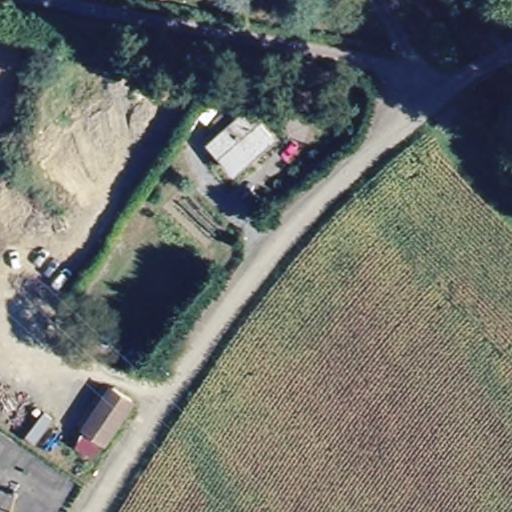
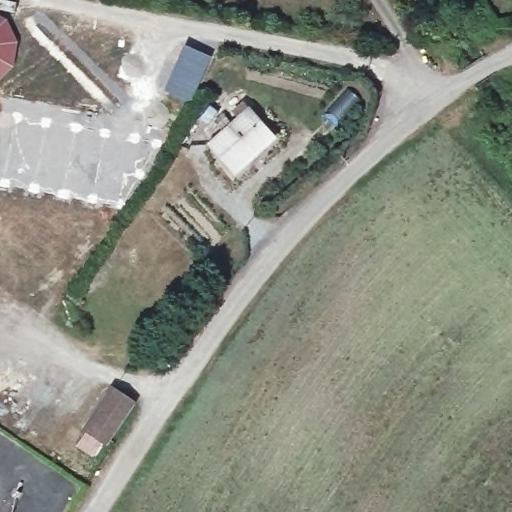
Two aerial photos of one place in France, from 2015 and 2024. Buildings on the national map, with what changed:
new [(20,42),(14,67),(0,81),(0,15),(9,19),(20,42)]
new [(186,44),(213,56),(192,103),(166,91),(186,44)]
unchanged [(209,144),(251,107),(280,138),(234,176),(209,144)]
unchanged [(75,443),(83,432),(85,429),(116,391),(136,407),(106,444),(103,448),(94,458),(75,443)]

